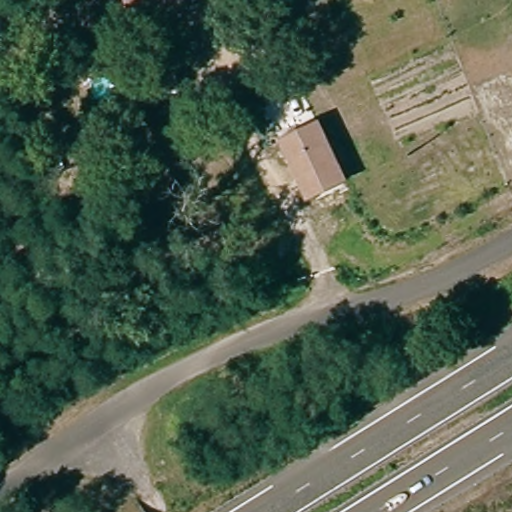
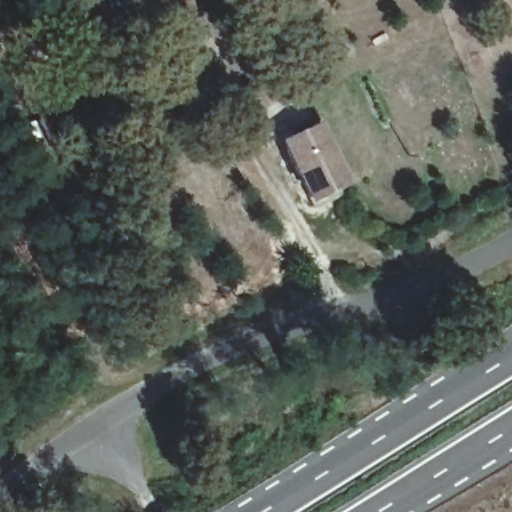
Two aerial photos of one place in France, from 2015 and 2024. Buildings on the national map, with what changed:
unchanged [(196,12),(129,27),(123,0),(193,0),(196,12)]
unchanged [(315,118),(348,178),(313,198),(278,144),(315,118)]

